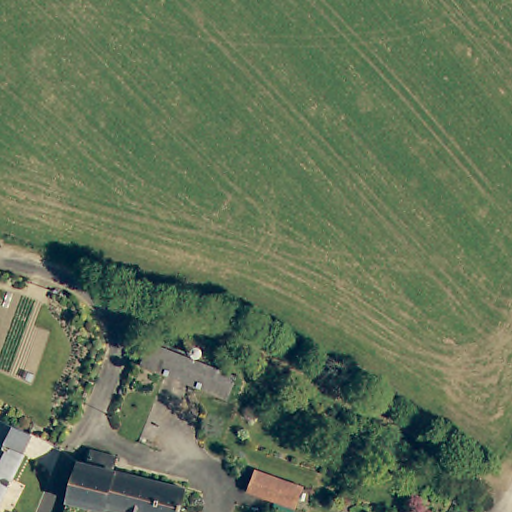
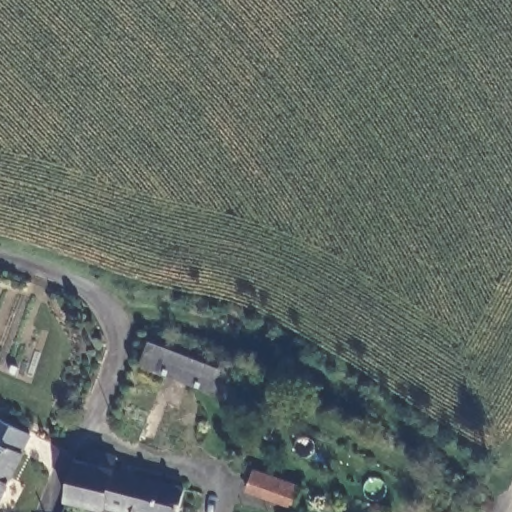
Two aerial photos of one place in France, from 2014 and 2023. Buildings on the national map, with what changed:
unchanged [(152,342),(238,376),(229,400),(141,365),(152,342)]
unchanged [(33,435),(24,452),(0,440),(0,418),(33,435)]
unchanged [(24,452),(0,501),(0,440),(24,452)]
unchanged [(92,451),(117,457),(114,471),(185,487),(179,512),(131,512),(105,506),(104,508),(67,500),(79,460),(85,462),(92,451)]
unchanged [(306,485),(299,507),(239,485),(246,465),(306,485)]
unchanged [(464,491),(483,502),(478,512),(434,512),(417,502),(435,473),(464,491)]

